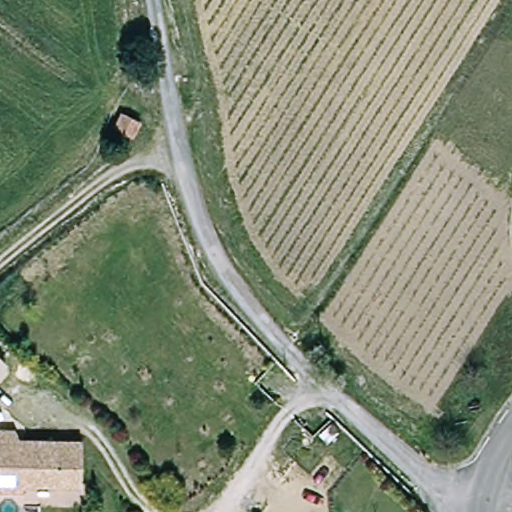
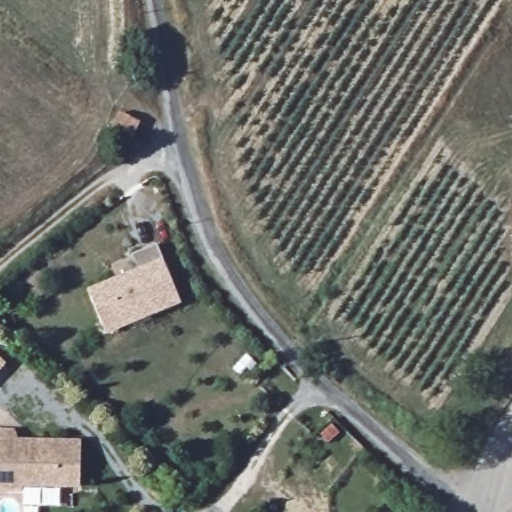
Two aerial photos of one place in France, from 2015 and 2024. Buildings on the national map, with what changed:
unchanged [(142,126),(133,145),(112,134),(120,115),(142,126)]
new [(107,337),(87,290),(137,268),(131,255),(157,245),(182,305),(107,337)]
unchanged [(0,369),(0,360),(5,364),(0,369)]
unchanged [(15,439),(80,440),(80,482),(22,481),(22,491),(0,490),(0,430),(15,430),(15,439)]

